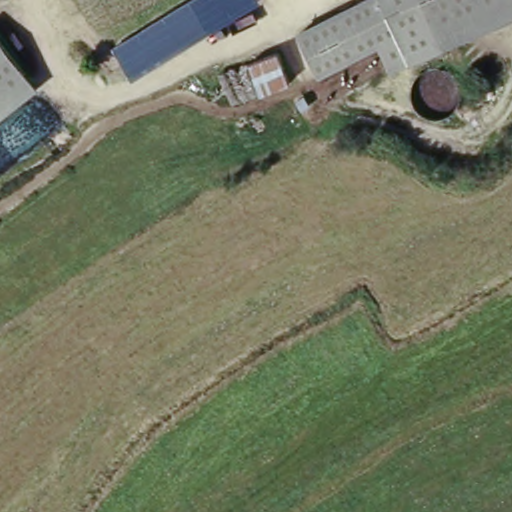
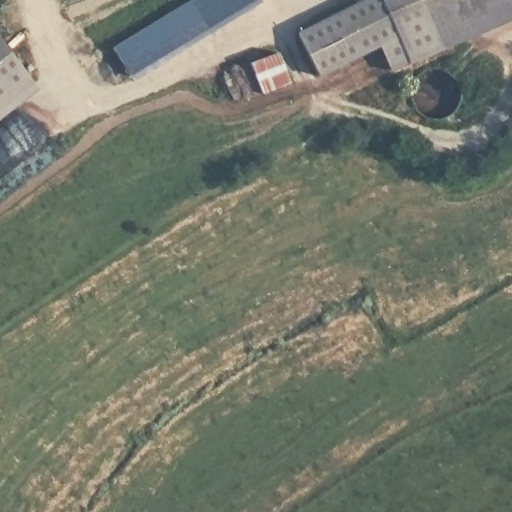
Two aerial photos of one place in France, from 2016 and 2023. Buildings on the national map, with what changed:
unchanged [(210,30),(136,76),(117,47),(194,0),(210,30)]
unchanged [(294,28),(358,0),(412,0),(420,16),(397,24),(402,36),(374,49),(318,75),(294,28)]
unchanged [(445,46),(384,72),(374,49),(402,36),(397,24),(420,16),(412,0),(425,0),(445,46)]
unchanged [(512,17),(445,46),(425,0),(512,0),(512,17)]
unchanged [(37,85),(0,115),(0,36),(37,85)]
unchanged [(282,51),(294,78),(252,94),(240,66),(272,54),(282,51)]

